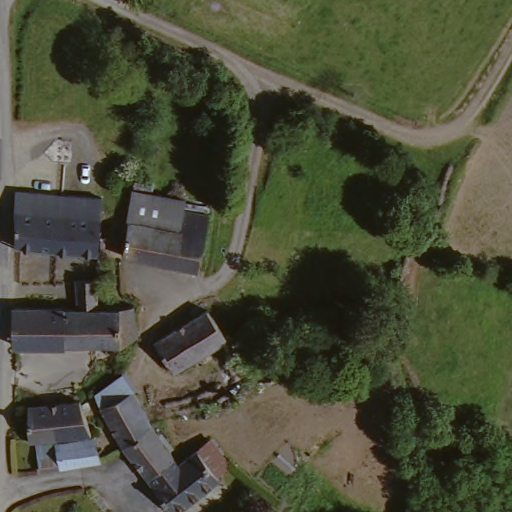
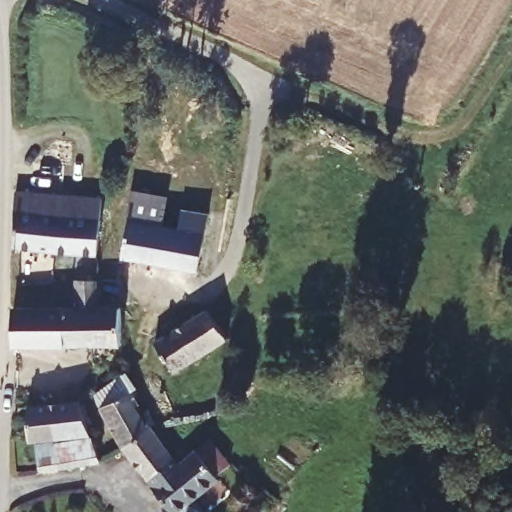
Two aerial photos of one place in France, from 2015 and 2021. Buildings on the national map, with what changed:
unchanged [(14,194),(101,202),(100,217),(98,257),(75,255),(13,251),(14,194)]
unchanged [(183,200),(181,212),(179,230),(132,222),(135,194),(183,200)]
unchanged [(208,216),(199,272),(121,260),(126,222),(132,222),(179,230),(181,212),(208,216)]
unchanged [(99,283),(101,283),(102,310),(128,310),(137,311),(138,341),(124,347),(16,350),(17,310),(79,311),(80,282),(99,283)]
unchanged [(226,337),(173,368),(154,341),(205,310),(226,337)]
unchanged [(150,426),(120,448),(92,397),(121,381),(150,426)]
unchanged [(31,408),(83,405),(91,437),(83,438),(35,443),(31,408)]
unchanged [(210,443),(227,468),(214,477),(217,482),(215,485),(178,512),(169,512),(120,448),(150,426),(174,471),(196,453),(210,443)]
unchanged [(100,463),(95,464),(51,473),(41,475),(36,448),(91,441),(100,463)]

